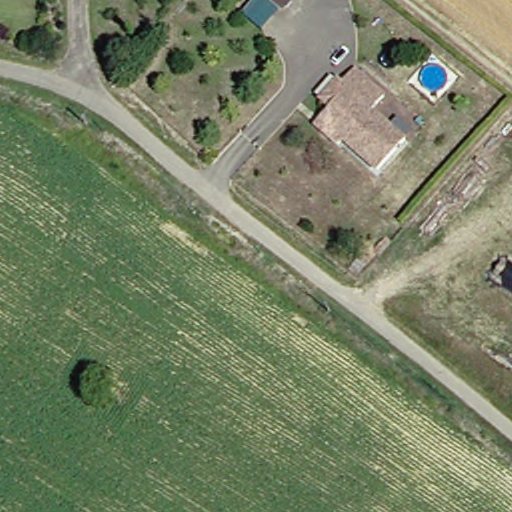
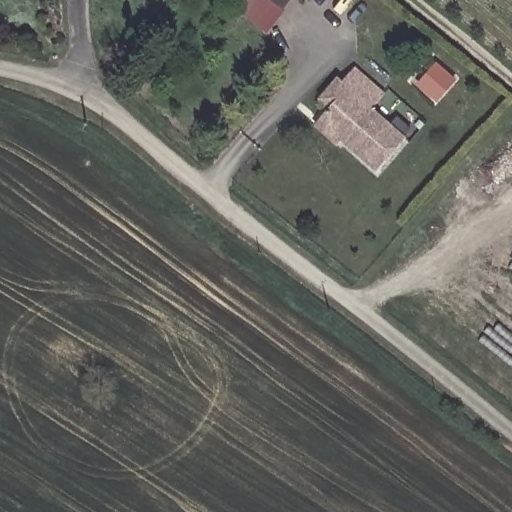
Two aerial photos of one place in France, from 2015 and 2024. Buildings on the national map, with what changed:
unchanged [(268,0),(290,0),(282,11),(268,0)]
unchanged [(307,125),(317,116),(323,107),(316,98),(334,76),(337,80),(350,66),(380,95),(368,109),(398,137),(371,168),(337,136),(329,145),(307,125)]

